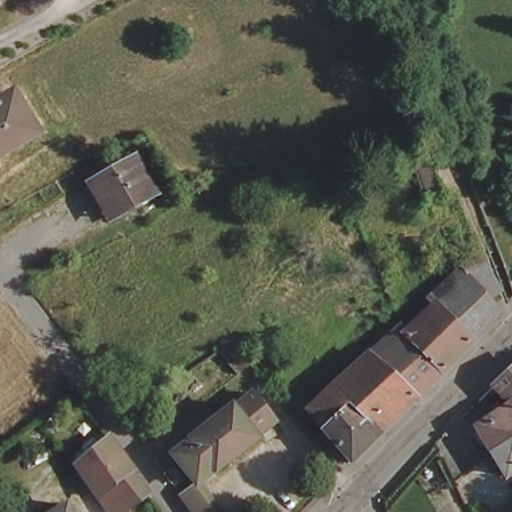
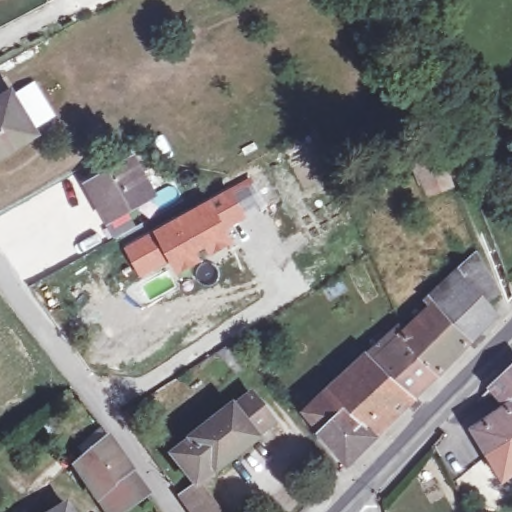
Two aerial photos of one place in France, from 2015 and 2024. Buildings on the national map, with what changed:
unchanged [(15,94),(37,135),(0,155),(0,101),(15,94)]
unchanged [(413,159),(438,146),(452,182),(428,192),(413,159)]
unchanged [(85,180),(130,152),(150,187),(105,215),(85,180)]
new [(159,233),(210,204),(231,193),(243,216),(225,227),(232,240),(180,269),(171,255),(142,273),(128,250),(159,233)]
unchanged [(403,340),(430,312),(423,305),(428,301),(472,257),(492,295),(482,303),(495,318),(496,318),(439,377),(403,340)]
unchanged [(390,331),(393,328),(403,340),(439,377),(412,405),(409,400),(365,356),(390,331)]
unchanged [(231,342),(249,363),(236,374),(217,351),(231,342)]
unchanged [(300,415),(363,353),(365,356),(409,400),(375,438),(347,411),(320,437),(300,415)]
unchanged [(512,366),(512,403),(500,380),(512,366)]
unchanged [(175,458),(196,443),(192,438),(238,405),(240,408),(258,395),(280,422),(260,437),(264,442),(221,475),(219,472),(200,486),(175,458)]
unchanged [(484,422),(512,407),(512,438),(497,447),(484,422)]
unchanged [(347,411),(375,438),(348,468),(320,437),(347,411)]
unchanged [(512,471),(511,471),(497,447),(512,438),(512,471)]
unchanged [(122,512),(106,512),(77,468),(107,440),(147,494),(122,512)]
unchanged [(194,512),(185,499),(200,486),(220,512),(194,512)]
unchanged [(68,512),(51,512),(63,505),(68,512)]

